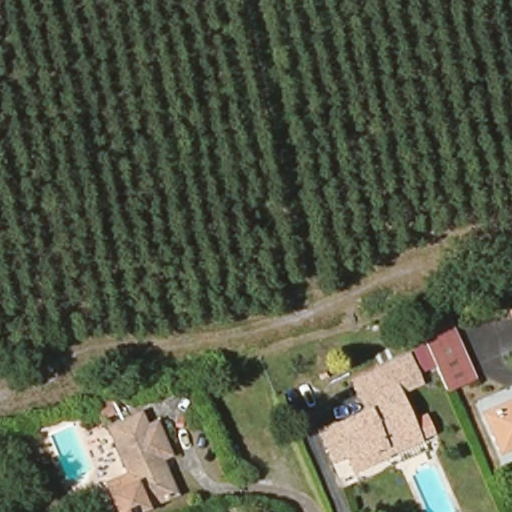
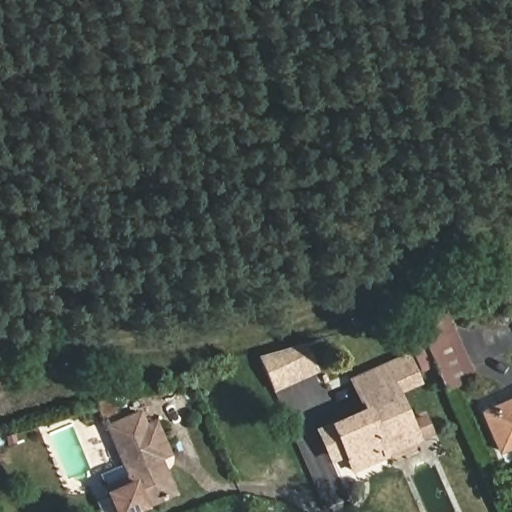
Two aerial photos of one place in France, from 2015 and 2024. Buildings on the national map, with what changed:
unchanged [(474,379),(447,391),(415,318),(443,310),(474,379)]
new [(302,346),(313,373),(272,391),(258,358),(302,346)]
unchanged [(395,393),(381,360),(407,350),(421,383),(400,392),(395,393)]
unchanged [(395,393),(400,392),(410,418),(424,413),(432,436),(350,471),(330,420),(359,408),(346,371),(381,360),(395,393)]
unchanged [(512,396),(512,439),(498,445),(482,408),(512,396)]
unchanged [(105,425),(136,411),(142,427),(154,422),(167,453),(156,459),(170,492),(124,512),(115,512),(106,490),(102,481),(125,471),(105,425)]

